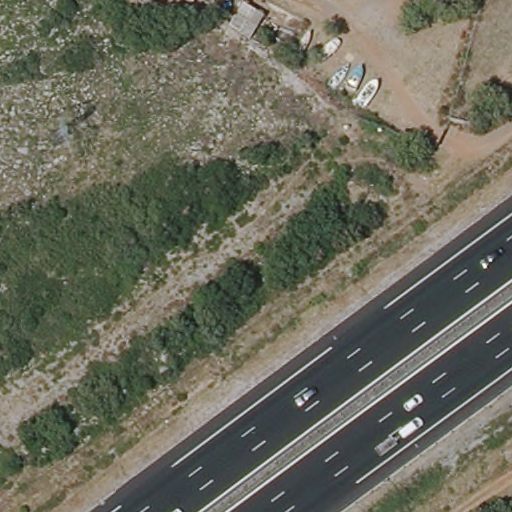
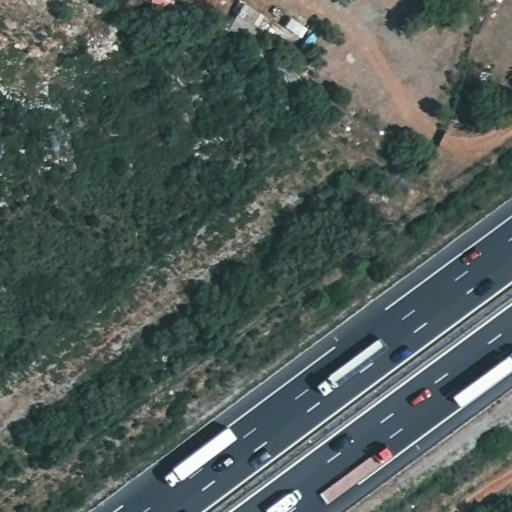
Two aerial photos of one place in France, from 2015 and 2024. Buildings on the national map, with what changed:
unchanged [(253,34),(234,22),(245,4),(264,16),(253,34)]

